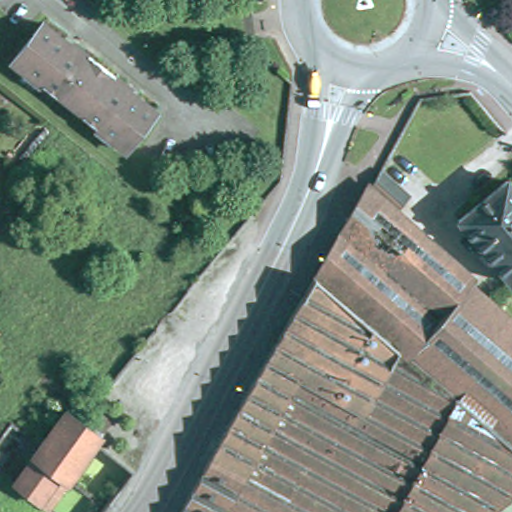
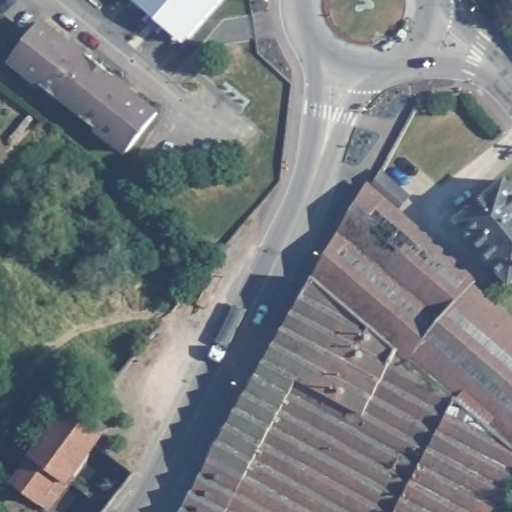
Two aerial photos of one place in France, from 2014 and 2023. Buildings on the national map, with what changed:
new [(131,0),(223,0),(184,45),(131,0)]
unchanged [(85,112),(60,93),(58,96),(12,61),(42,21),(70,44),(73,40),(131,86),(128,89),(158,111),(128,150),(82,115),(85,112)]
unchanged [(512,314),(512,512),(181,512),(232,420),(370,180),(372,182),(380,165),(410,191),(397,205),(477,276),(473,281),(512,314)]
unchanged [(510,285),(458,221),(507,181),(512,187),(512,284),(510,285)]
unchanged [(81,381),(97,395),(90,402),(75,390),(81,381)]
unchanged [(45,509),(10,483),(37,445),(63,409),(79,420),(84,424),(95,408),(108,418),(97,434),(65,480),(45,509)]

